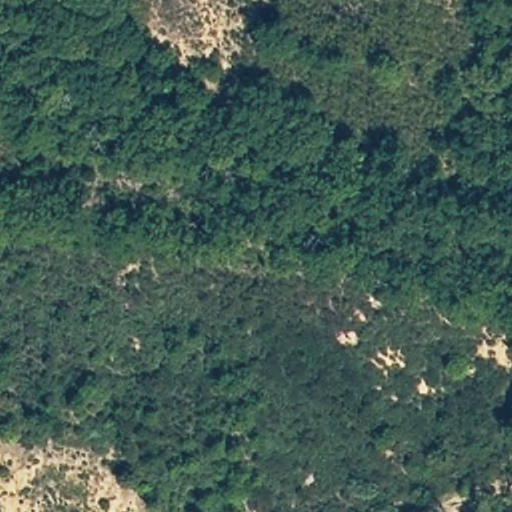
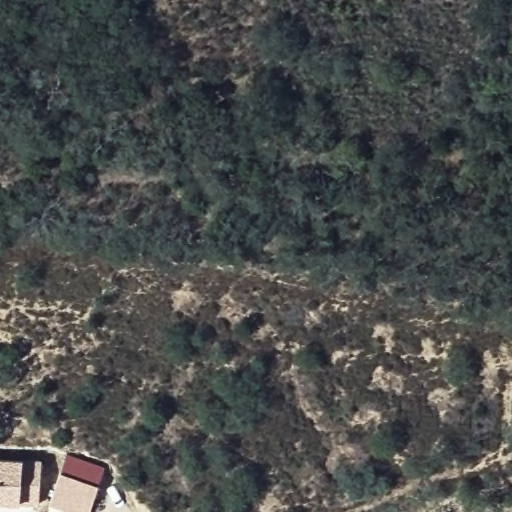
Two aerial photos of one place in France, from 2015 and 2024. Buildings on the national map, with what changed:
new [(0,503),(0,459),(24,460),(42,461),(40,505),(21,505),(0,503)]
new [(68,512),(51,506),(60,474),(98,487),(90,512),(68,512)]

